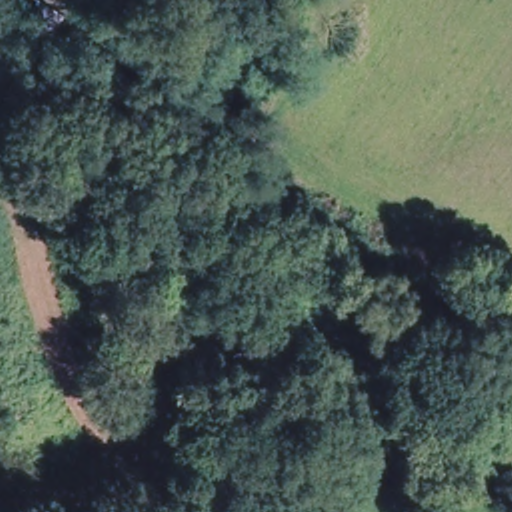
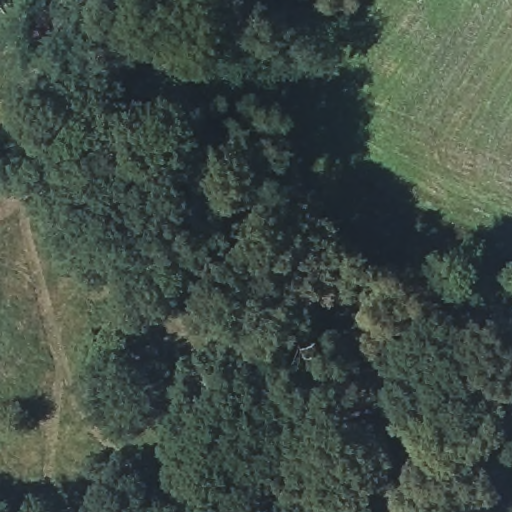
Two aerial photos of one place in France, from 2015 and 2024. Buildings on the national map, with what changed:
unchanged [(52,31),(28,21),(33,0),(38,0),(64,6),(52,31)]

